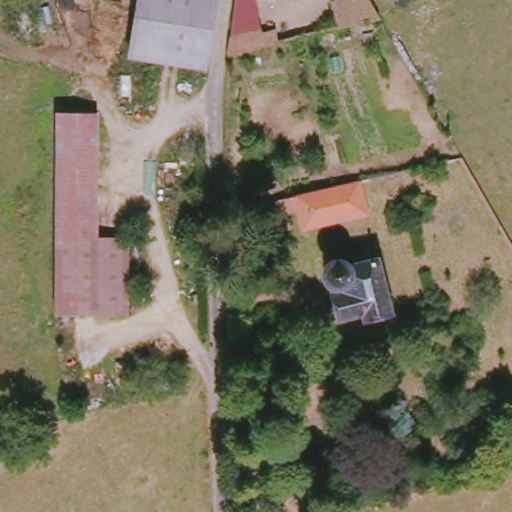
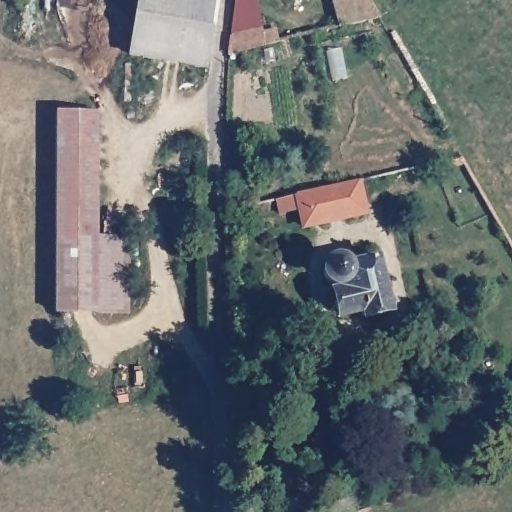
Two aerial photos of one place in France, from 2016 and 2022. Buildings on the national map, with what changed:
unchanged [(133,56),(141,0),(217,0),(208,64),(208,67),(133,56)]
unchanged [(236,0),(259,0),(266,29),(277,26),(280,41),(232,52),(236,0)]
unchanged [(336,0),(372,0),(382,17),(342,26),(336,0)]
unchanged [(99,113),(98,237),(129,238),(129,316),(82,316),(57,316),(59,113),(78,113),(99,113)]
unchanged [(290,197),(357,182),(364,217),(298,233),(290,197)]
unchanged [(343,284),(337,285),(332,283),(328,281),(324,276),(321,271),(321,266),(321,259),(323,255),(327,251),(332,248),(337,246),(342,246),(346,247),(350,248),(354,251),(356,255),(359,260),(380,256),(393,314),(365,321),(363,314),(339,319),(333,293),(344,291),(343,284)]

